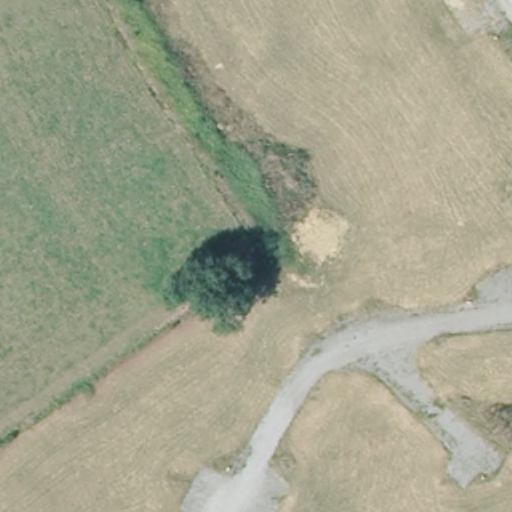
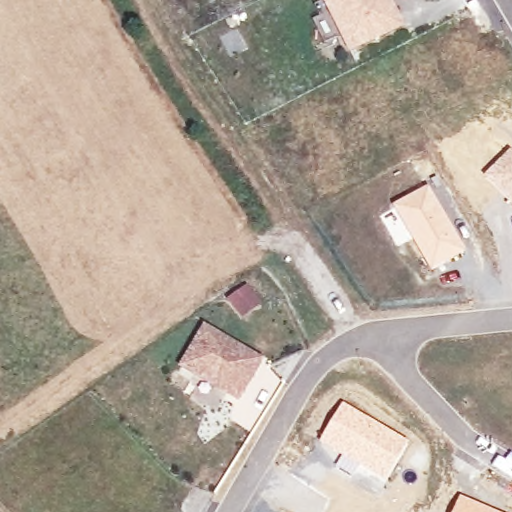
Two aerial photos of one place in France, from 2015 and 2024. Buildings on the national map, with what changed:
new [(404,28),(348,55),(320,0),(390,0),(404,28)]
new [(512,153),(512,207),(481,179),(509,150),(512,153)]
new [(427,185),(466,250),(429,271),(392,206),(427,185)]
new [(264,357),(237,403),(176,371),(202,324),(264,357)]
new [(341,403),(408,442),(383,484),(355,468),(350,475),(336,466),(341,458),(318,443),(341,403)]
new [(489,512),(453,512),(459,498),(489,512)]

